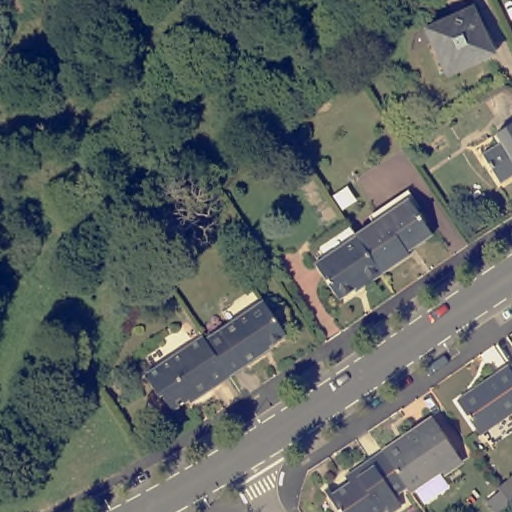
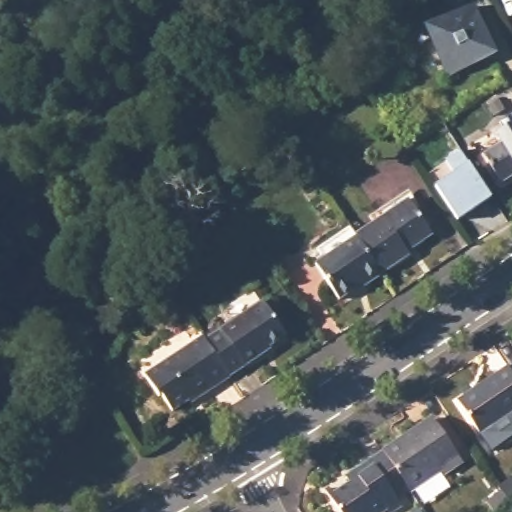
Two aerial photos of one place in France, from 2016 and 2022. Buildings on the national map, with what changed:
unchanged [(491,46),(487,48),(486,53),(487,56),(447,75),(431,39),(425,26),(437,20),(472,6),(491,46)]
unchanged [(501,184),(483,153),(501,143),(495,134),(512,123),(512,176),(501,184)]
new [(457,175),(447,161),(462,152),(493,199),(460,222),(437,189),(457,175)]
unchanged [(354,234),(410,198),(433,234),(407,252),(408,255),(381,274),(354,234)]
unchanged [(366,284),(364,280),(338,299),(315,264),(323,258),(317,249),(348,227),(354,234),(381,274),(366,284)]
unchanged [(205,340),(263,301),(286,335),(258,354),(260,356),(230,377),(205,340)]
unchanged [(162,394),(159,396),(145,375),(202,337),(205,340),(230,377),(197,398),(195,396),(172,410),(162,394)]
unchanged [(512,363),(512,367),(510,364),(512,363)]
unchanged [(458,399),(510,364),(512,367),(512,411),(482,432),(458,399)]
unchanged [(410,481),(385,446),(434,412),(463,455),(445,468),(442,464),(412,484),(410,481)]
unchanged [(326,486),(331,482),(335,488),(355,474),(351,469),(385,446),(410,481),(395,491),(402,500),(391,508),(387,503),(374,512),(344,512),(326,486)]

